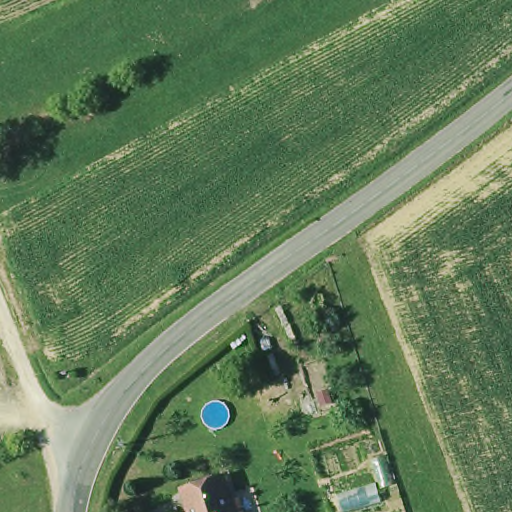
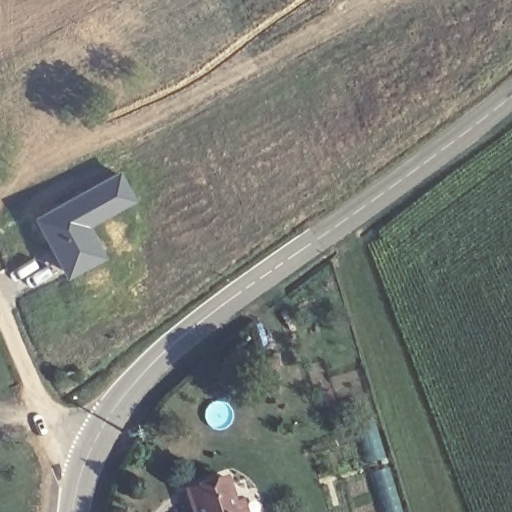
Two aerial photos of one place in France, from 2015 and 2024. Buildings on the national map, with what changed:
new [(85,184),(121,167),(136,199),(90,222),(105,255),(63,277),(29,214),(85,184)]
unchanged [(192,512),(185,488),(228,475),(240,512),(192,512)]

